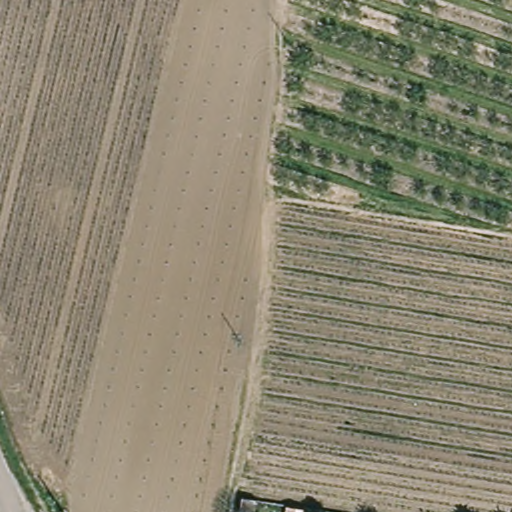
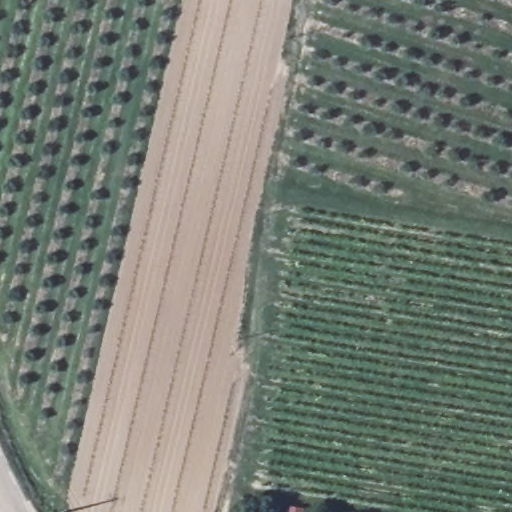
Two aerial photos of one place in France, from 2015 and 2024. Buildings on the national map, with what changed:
unchanged [(286,503),(306,506),(305,512),(285,512),(286,503)]

